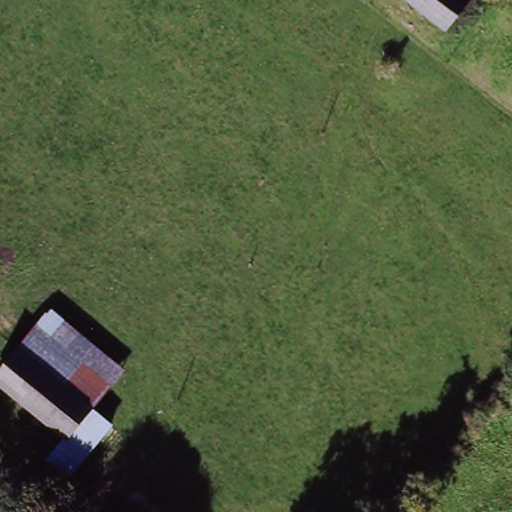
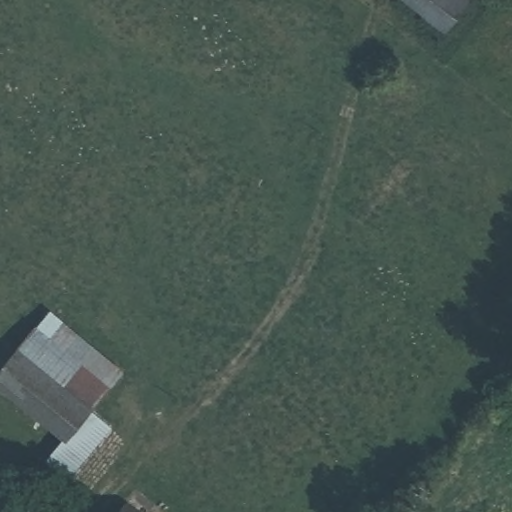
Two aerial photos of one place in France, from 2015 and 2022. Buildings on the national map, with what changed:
unchanged [(428,0),(467,0),(453,19),(428,0)]
unchanged [(49,305),(124,369),(95,408),(110,424),(58,487),(35,466),(60,438),(0,391),(0,362),(15,344),(20,340),(49,305)]
unchanged [(133,503),(144,512),(126,512),(133,503)]

